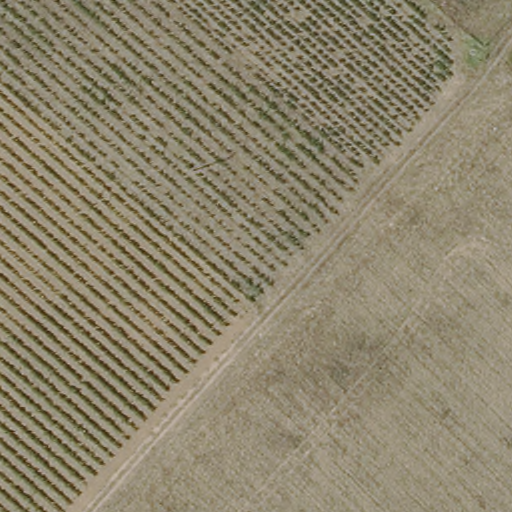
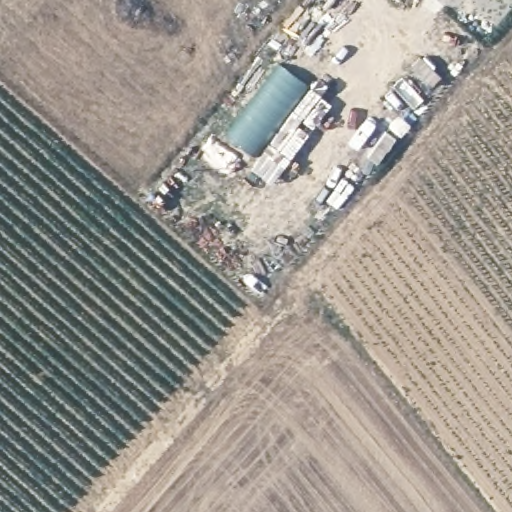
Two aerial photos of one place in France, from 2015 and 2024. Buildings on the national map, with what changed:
new [(307,85),(255,155),(227,133),(280,62),(307,85)]

